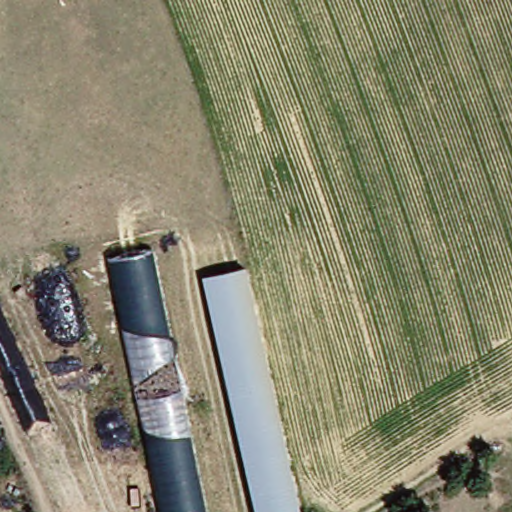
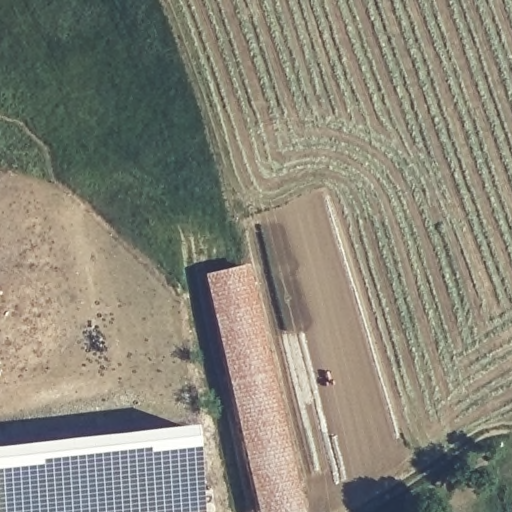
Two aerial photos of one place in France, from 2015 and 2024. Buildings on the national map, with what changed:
demolished [(199,512),(155,512),(108,256),(147,249),(199,512)]
unchanged [(203,277),(247,269),(298,512),(254,512),(203,277)]
new [(197,512),(0,512),(0,452),(188,433),(197,512)]

